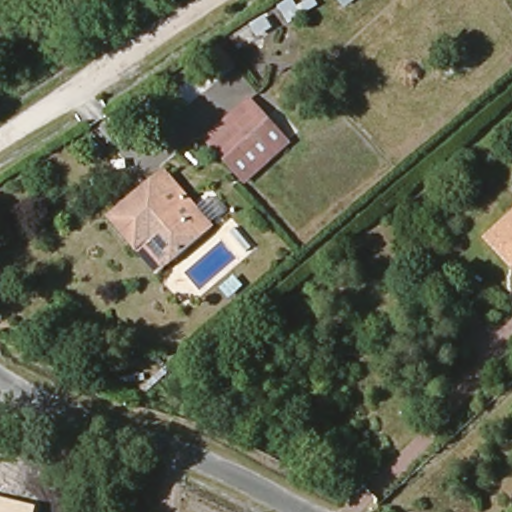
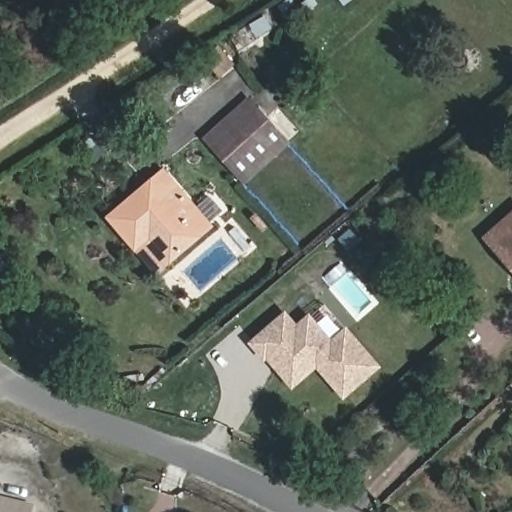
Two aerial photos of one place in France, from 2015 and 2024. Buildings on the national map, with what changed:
unchanged [(247,180),(206,137),(249,96),(290,139),(247,180)]
unchanged [(139,241),(133,246),(110,220),(161,175),(204,224),(166,258),(159,264),(139,241)]
unchanged [(512,216),(512,268),(485,240),(512,216)]
new [(292,388),(267,357),(255,344),(287,316),(298,330),(311,320),(333,345),(348,333),(378,369),(346,396),(316,361),(318,365),(292,388)]
unchanged [(0,512),(0,499),(36,507),(34,512),(0,512)]

